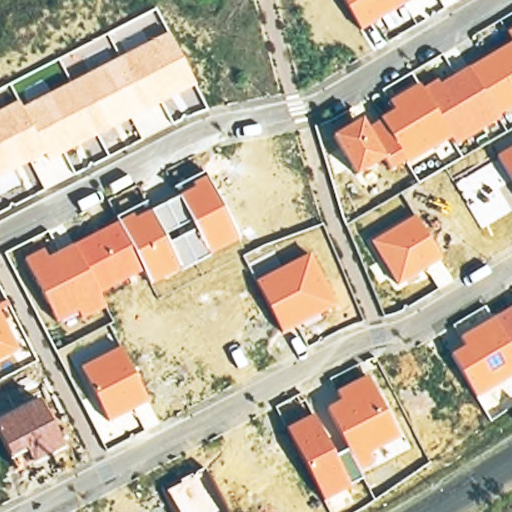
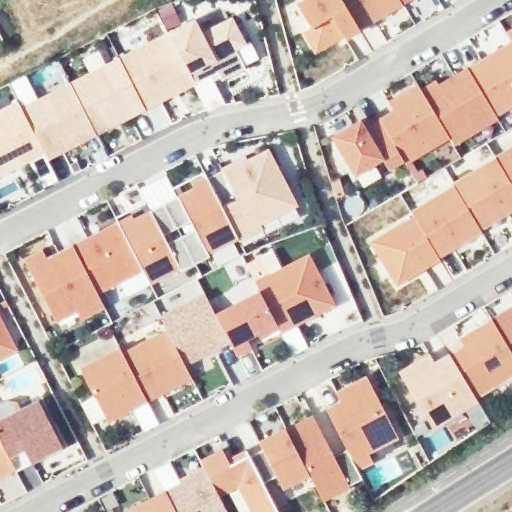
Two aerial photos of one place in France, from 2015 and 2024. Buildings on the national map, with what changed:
new [(315,55),(301,32),(309,26),(295,4),(301,0),(342,0),(360,30),(345,40),(315,55)]
unchanged [(342,0),(412,0),(360,30),(342,0)]
new [(170,33),(168,30),(194,17),(201,32),(230,16),(245,45),(235,51),(243,69),(221,79),(217,72),(193,84),(170,33)]
unchanged [(512,31),(512,36),(510,32),(512,31)]
unchanged [(49,161),(44,154),(0,177),(0,111),(18,102),(21,108),(170,33),(193,84),(195,85),(49,161)]
unchanged [(499,120),(456,145),(450,137),(391,174),(383,162),(356,175),(332,136),(360,119),(366,132),(395,114),(390,101),(422,84),(423,90),(437,84),(439,86),(512,45),(512,109),(497,117),(499,120)]
unchanged [(512,148),(512,183),(497,156),(512,148)]
new [(261,224),(263,227),(238,240),(207,179),(205,175),(244,156),(246,160),(269,149),(297,205),(261,224)]
new [(452,182),(497,156),(512,183),(512,212),(481,230),(454,185),(452,182)]
unchanged [(238,240),(150,284),(145,271),(98,295),(107,310),(81,321),(77,313),(56,325),(25,259),(42,251),(48,258),(207,179),(238,240)]
new [(481,230),(483,232),(441,257),(418,216),(415,218),(410,210),(454,185),(481,230)]
unchanged [(397,286),(372,245),(415,218),(418,216),(441,257),(443,260),(397,286)]
unchanged [(335,307),(281,335),(255,280),(310,255),(335,307)]
new [(230,344),(215,313),(260,290),(278,328),(249,343),(252,350),(237,358),(230,344)]
new [(215,313),(230,344),(185,366),(165,328),(158,315),(204,292),(215,313)]
unchanged [(451,356),(465,348),(460,340),(512,310),(512,376),(477,397),(451,356)]
unchanged [(20,353),(0,362),(0,313),(20,353)]
new [(151,401),(122,350),(165,328),(185,366),(191,379),(151,401)]
unchanged [(152,402),(108,423),(80,368),(121,348),(152,402)]
new [(480,401),(432,431),(398,371),(428,353),(433,361),(449,352),(451,356),(477,397),(480,401)]
unchanged [(400,438),(370,453),(377,464),(359,471),(364,481),(320,502),(285,429),(315,417),(330,456),(345,450),(327,407),(342,400),(338,391),(368,377),(400,438)]
unchanged [(69,451),(31,468),(25,455),(10,462),(0,441),(0,417),(42,398),(69,451)]
new [(282,490),(276,476),(262,483),(249,457),(263,450),(257,440),(283,427),(285,429),(307,476),(282,490)]
new [(10,462),(13,471),(0,478),(0,441),(10,462)]
new [(201,458),(222,447),(230,463),(247,455),(249,457),(262,483),(277,512),(249,512),(236,487),(220,495),(205,465),(201,458)]
new [(165,490),(178,483),(176,479),(205,465),(220,495),(228,512),(176,512),(165,490)]
new [(165,490),(176,512),(121,512),(165,490)]

